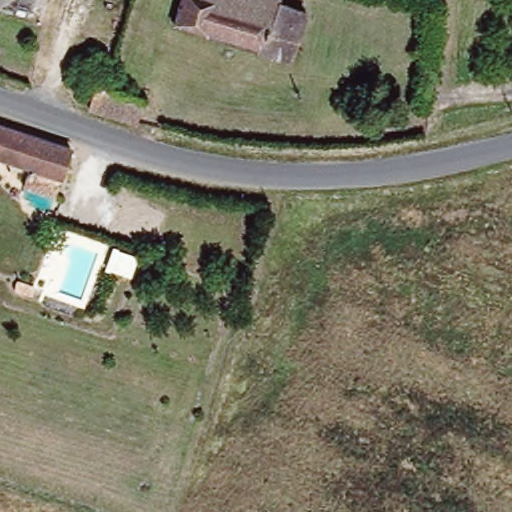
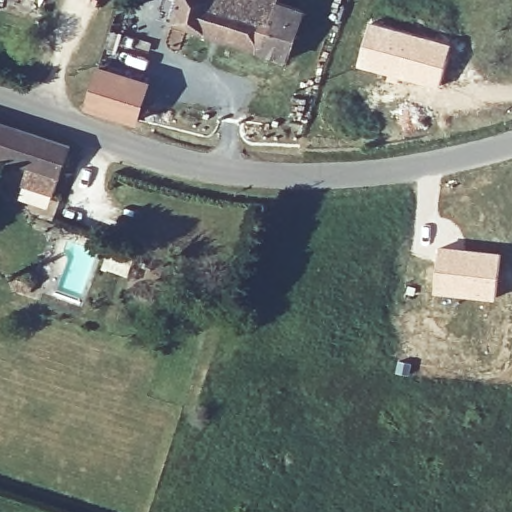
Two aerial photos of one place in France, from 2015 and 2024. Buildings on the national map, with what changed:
unchanged [(303,10),(284,60),(172,25),(180,0),(277,0),(303,10)]
new [(370,21),(451,44),(439,88),(356,66),(370,21)]
unchanged [(93,83),(141,100),(131,123),(84,108),(93,83)]
unchanged [(57,180),(50,196),(22,187),(27,170),(0,161),(0,127),(69,151),(57,180)]
new [(439,245),(502,251),(496,300),(432,292),(439,245)]

